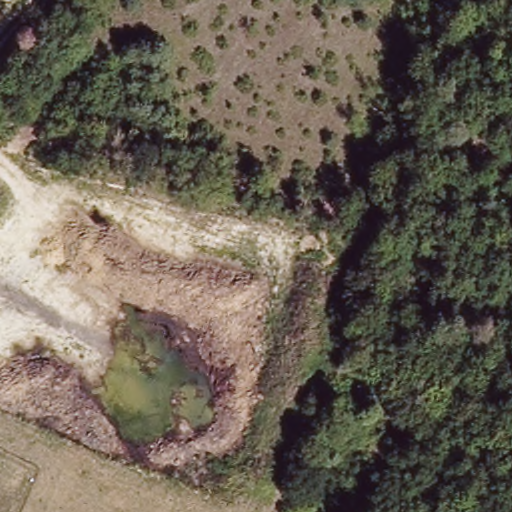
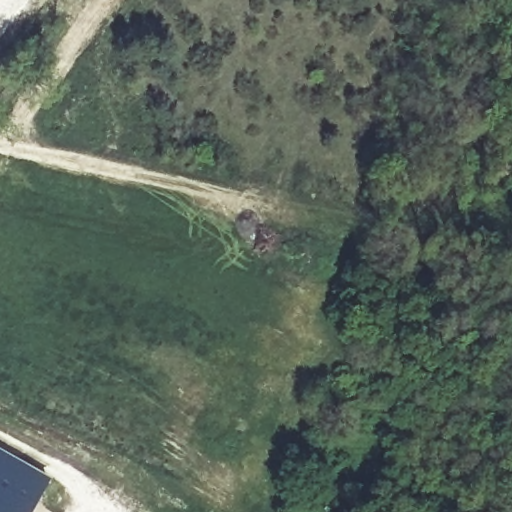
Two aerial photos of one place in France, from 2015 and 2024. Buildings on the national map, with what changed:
new [(48,482),(31,512),(0,512),(0,454),(48,482)]

